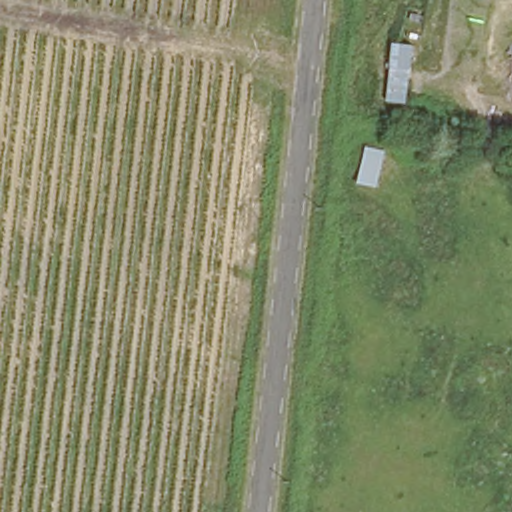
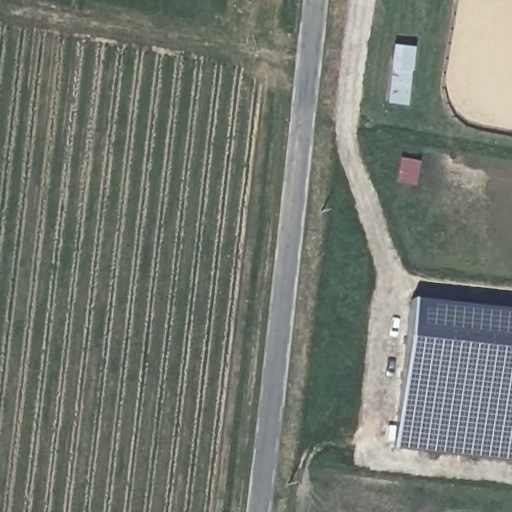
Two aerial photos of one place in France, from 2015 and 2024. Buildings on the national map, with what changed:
new [(414,305),(512,316),(512,466),(400,454),(414,305)]

